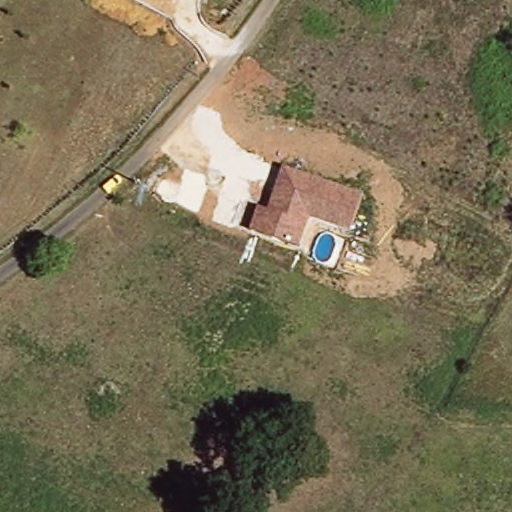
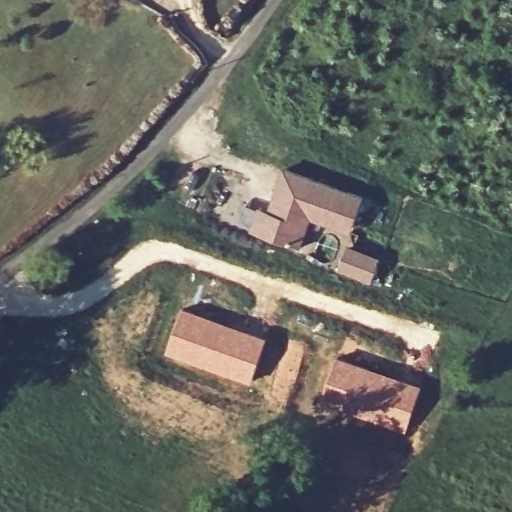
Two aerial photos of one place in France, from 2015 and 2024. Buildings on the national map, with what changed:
unchanged [(365,195),(352,231),(312,218),(302,247),(252,231),(259,207),(270,211),(284,169),(365,195)]
new [(345,244),(381,256),(370,285),(335,272),(345,244)]
new [(181,308),(267,336),(252,384),(165,353),(181,308)]
new [(335,355),(422,384),(405,433),(345,415),(344,419),(314,411),(335,355)]

